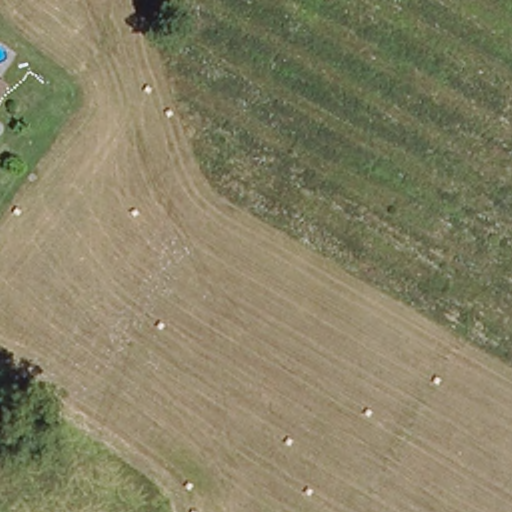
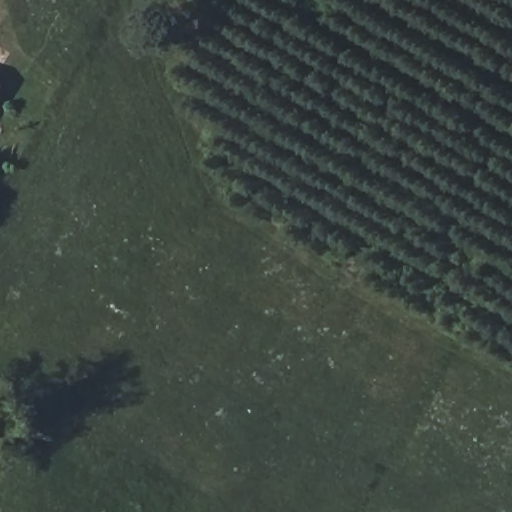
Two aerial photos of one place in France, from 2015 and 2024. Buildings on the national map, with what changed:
unchanged [(6,89),(0,98),(0,85),(6,89)]

